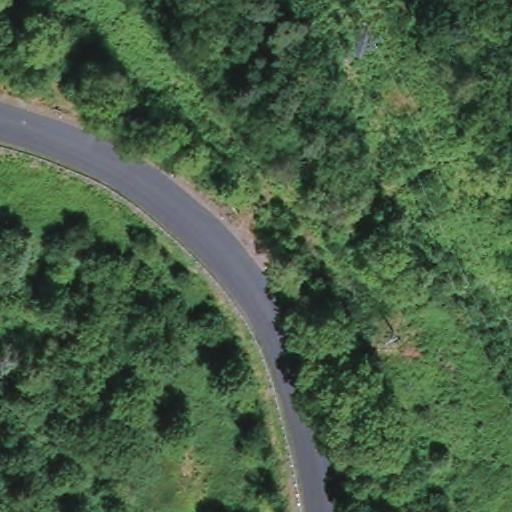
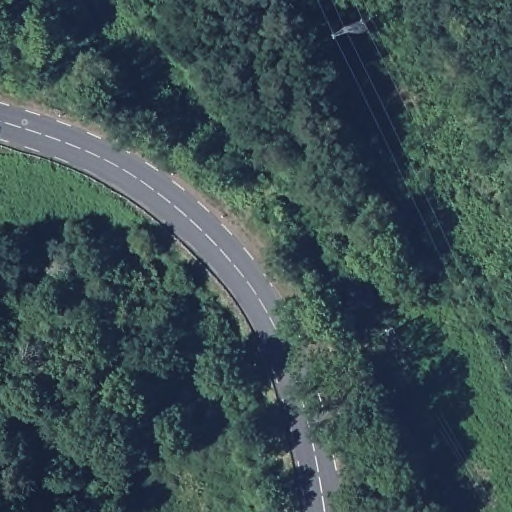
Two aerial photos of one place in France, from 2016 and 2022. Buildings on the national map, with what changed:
[]

